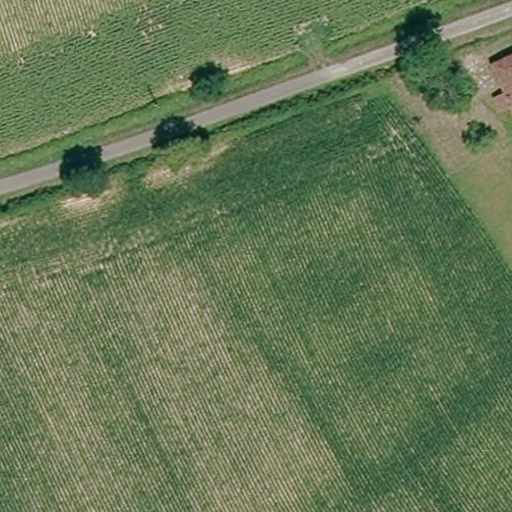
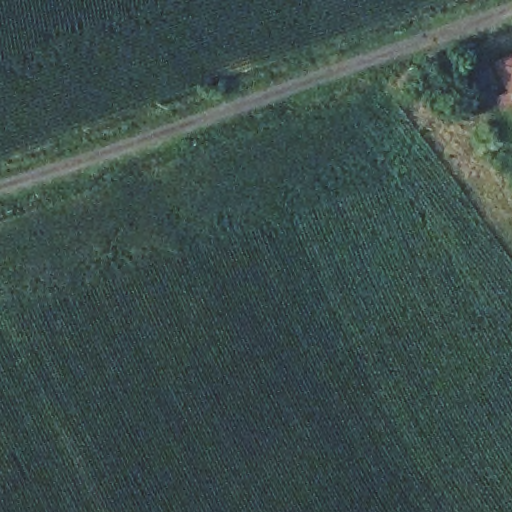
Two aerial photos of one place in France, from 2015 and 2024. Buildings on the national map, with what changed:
unchanged [(512,63),(512,93),(502,67),(512,63)]
unchanged [(503,100),(512,95),(512,113),(509,115),(503,100)]

